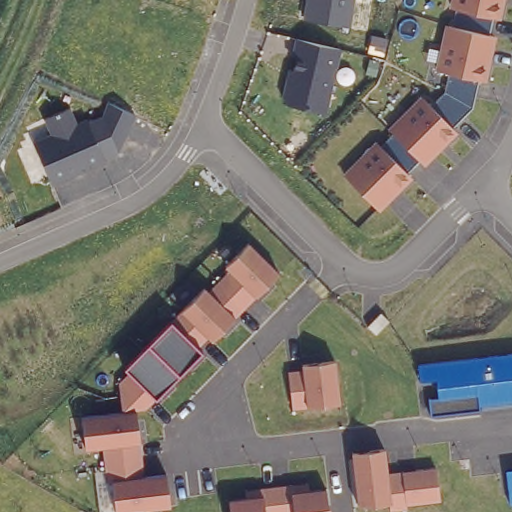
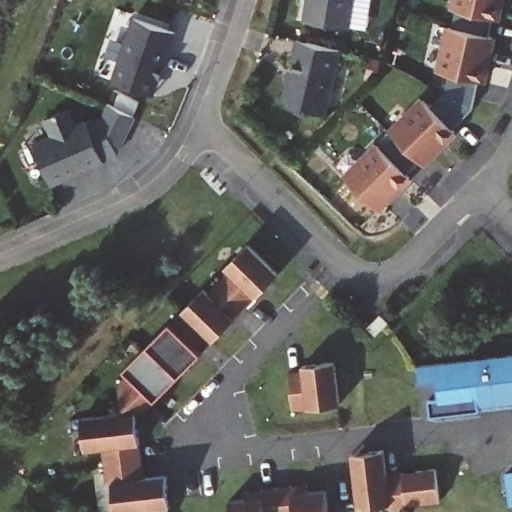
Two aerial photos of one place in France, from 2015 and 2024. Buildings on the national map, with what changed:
unchanged [(303,18),(306,0),(354,0),(350,26),(303,18)]
unchanged [(493,19),(490,34),(495,36),(485,81),(479,80),(472,107),(452,128),(457,134),(422,166),(417,162),(406,174),(412,180),(378,210),(345,174),(375,142),(380,146),(391,135),(387,130),(422,95),(432,105),(443,94),(448,73),(436,70),(446,26),(454,29),(457,13),(451,10),(454,0),(504,0),(500,19),(493,19)]
new [(130,16),(173,30),(155,92),(110,77),(130,16)]
unchanged [(340,50),(327,111),(283,102),(290,67),(294,68),(297,54),(293,52),(296,37),(340,50)]
unchanged [(77,122),(88,119),(90,122),(103,116),(107,103),(137,115),(118,155),(105,160),(105,162),(52,183),(35,140),(51,132),(45,117),(70,107),(77,122)]
unchanged [(230,271),(225,267),(248,244),(278,275),(245,308),(219,282),(230,271)]
unchanged [(245,308),(212,342),(208,338),(181,311),(205,288),(208,292),(219,282),(245,308)]
unchanged [(179,376),(148,345),(171,322),(181,311),(208,338),(197,348),(201,353),(179,376)]
unchanged [(376,335),(368,328),(381,315),(390,322),(376,335)]
unchanged [(163,508),(133,512),(116,512),(112,483),(107,483),(105,465),(105,460),(103,447),(86,450),(82,417),(122,413),(119,384),(130,373),(125,369),(148,345),(179,376),(145,410),(136,411),(138,429),(142,461),(144,478),(166,475),(168,490),(169,498),(170,507),(163,508)]
unchanged [(479,406),(480,410),(431,416),(429,400),(438,398),(436,380),(420,382),(418,365),(512,354),(512,402),(479,406)]
unchanged [(340,405),(293,410),(288,373),(303,371),(302,365),(335,361),(340,405)]
unchanged [(440,501),(406,505),(407,510),(391,512),(390,505),(359,508),(353,460),(352,453),(370,451),(384,450),(387,475),(402,473),(416,471),(436,469),(440,501)]
unchanged [(512,472),(512,505),(510,505),(506,473),(512,472)]
unchanged [(277,488),(292,486),(308,485),(309,492),(326,490),(328,512),(280,512),(277,488)]
unchanged [(230,501),(246,500),(246,491),(261,490),(277,488),(280,512),(231,512),(230,501)]

